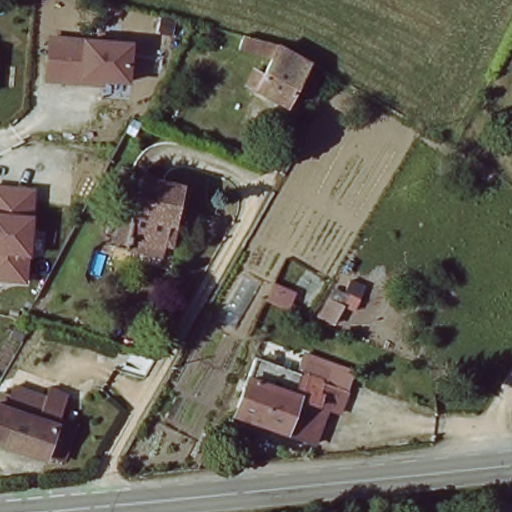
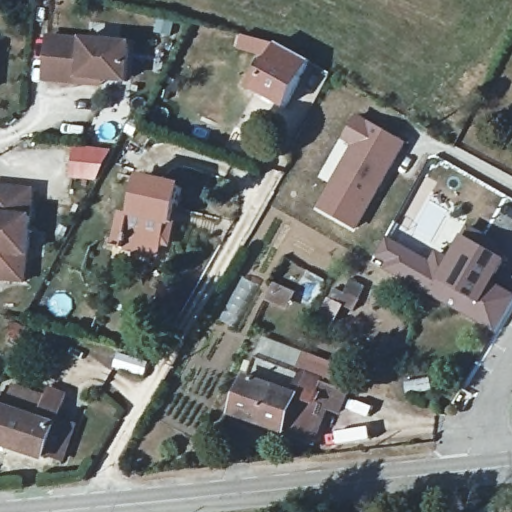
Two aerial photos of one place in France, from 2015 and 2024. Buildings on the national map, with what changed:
unchanged [(41,83),(44,35),(131,41),(128,82),(105,81),(105,87),(41,83)]
unchanged [(276,45),(311,63),(283,110),(246,91),(253,77),(264,81),(271,66),(238,50),(244,37),(276,45)]
new [(350,144),(340,138),(356,111),(408,142),(359,230),(315,209),(350,144)]
new [(67,151),(101,154),(88,181),(65,179),(67,151)]
unchanged [(127,238),(129,220),(138,180),(179,190),(175,217),(168,215),(161,246),(127,238)]
unchanged [(33,214),(29,255),(26,284),(0,282),(0,184),(36,187),(33,214)]
unchanged [(127,238),(161,246),(158,260),(108,248),(115,216),(129,220),(127,238)]
new [(429,259),(436,248),(447,254),(461,230),(504,256),(491,280),(512,292),(512,304),(497,332),(381,267),(386,261),(376,255),(386,235),(429,259)]
unchanged [(340,416),(330,412),(315,449),(304,445),(321,407),(311,404),(320,382),(298,373),(305,353),(358,372),(340,416)]
unchanged [(311,404),(321,407),(304,445),(229,415),(243,377),(250,356),(275,365),(320,382),(311,404)]
unchanged [(53,460),(51,465),(0,451),(0,418),(10,420),(15,402),(46,411),(50,397),(70,403),(60,437),(70,441),(63,463),(53,460)]

